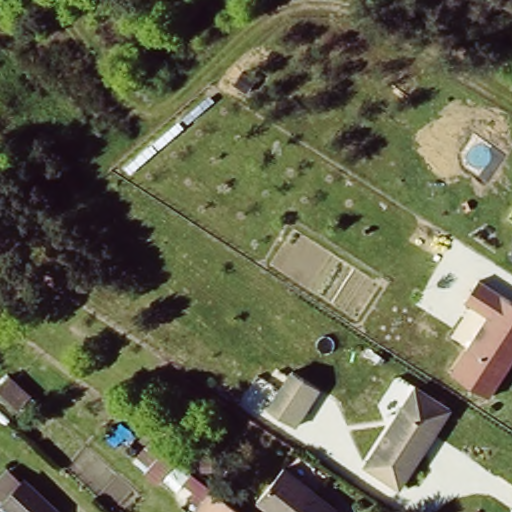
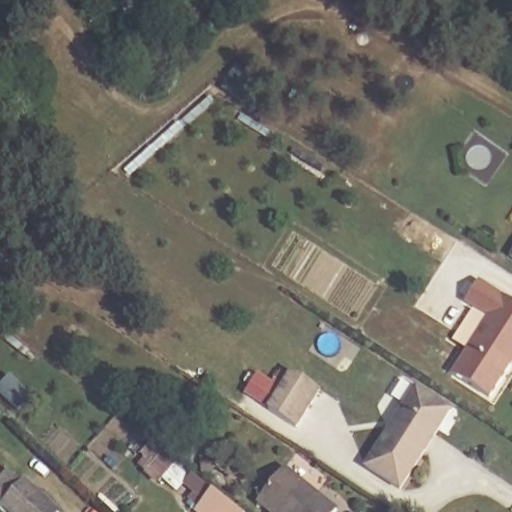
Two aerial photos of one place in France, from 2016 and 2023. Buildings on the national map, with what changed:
unchanged [(511,256),(512,254),(512,257),(511,256)]
unchanged [(512,302),(512,353),(482,395),(447,369),(486,314),(464,298),(478,277),(512,302)]
unchanged [(314,387),(320,391),(297,428),(292,423),(267,407),(289,371),(314,387)]
unchanged [(452,411),(400,492),(362,467),(415,386),(452,411)]
unchanged [(192,475),(180,491),(159,477),(155,479),(142,469),(147,464),(135,452),(147,442),(192,475)]
unchanged [(335,510),(333,512),(268,512),(255,502),(281,468),(335,510)]
unchanged [(9,512),(5,508),(26,487),(53,512),(9,512)]
unchanged [(240,512),(200,512),(195,507),(210,487),(240,512)]

